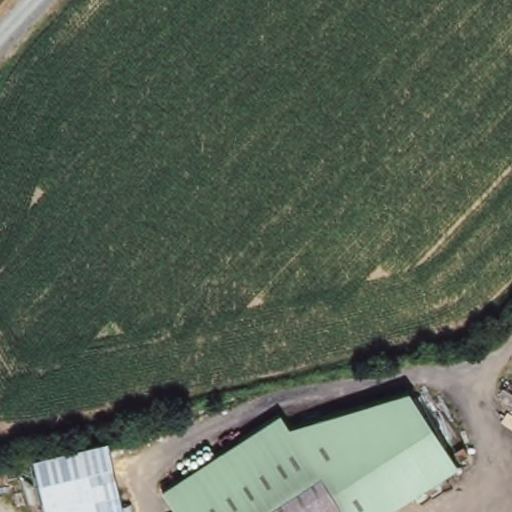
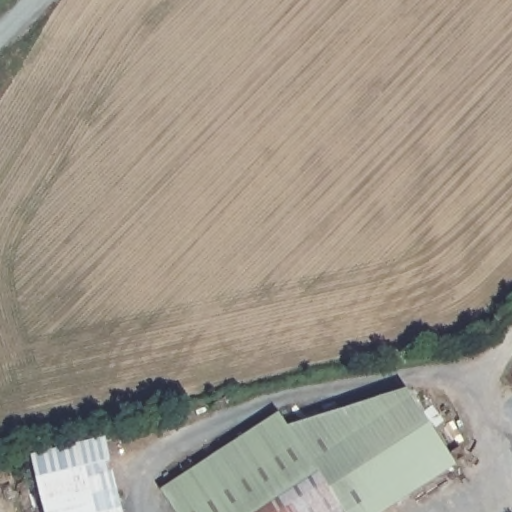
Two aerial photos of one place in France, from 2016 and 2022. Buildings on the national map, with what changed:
unchanged [(285,425),(406,388),(455,466),(384,512),(174,512),(159,488),(275,409),(285,425)]
unchanged [(104,437),(121,512),(42,512),(30,454),(104,437)]

